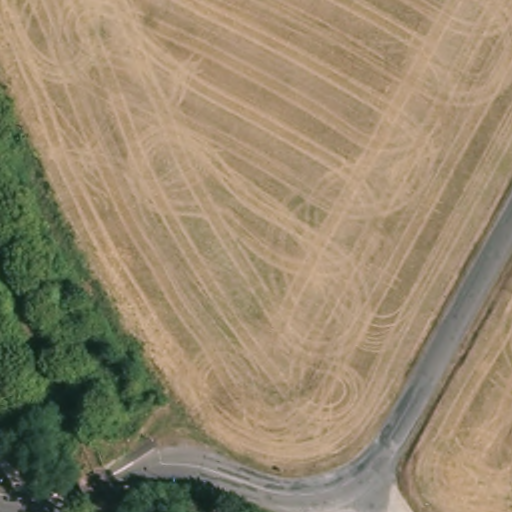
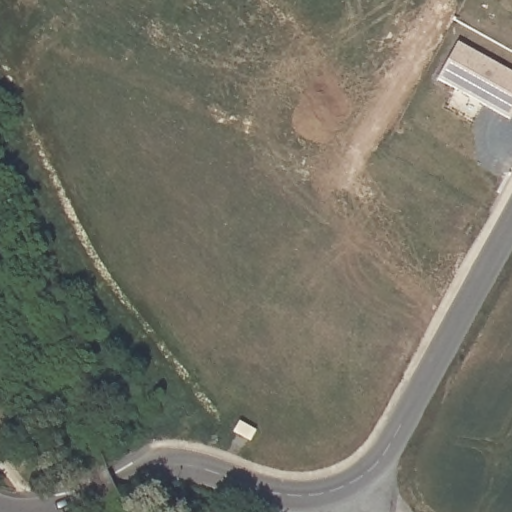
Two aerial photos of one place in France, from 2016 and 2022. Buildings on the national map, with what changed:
new [(512,117),(510,120),(436,80),(457,43),(512,72),(512,117)]

